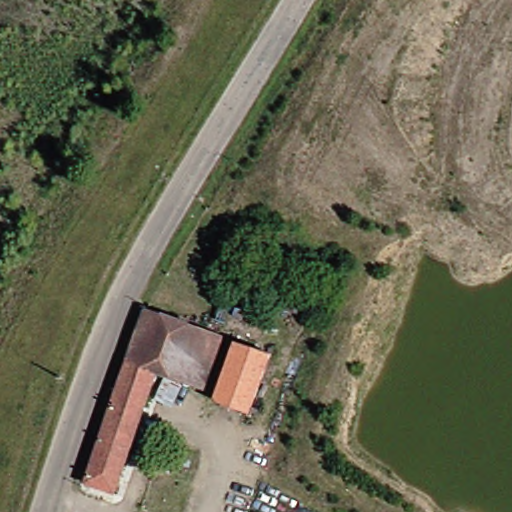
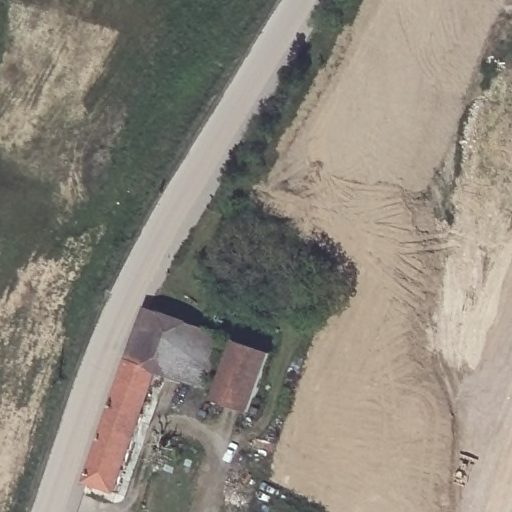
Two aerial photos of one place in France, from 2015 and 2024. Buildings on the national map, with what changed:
unchanged [(261,297),(233,285),(237,274),(266,286),(261,297)]
unchanged [(281,293),(305,301),(300,320),(275,311),(281,293)]
unchanged [(159,376),(116,492),(87,482),(151,308),(180,318),(159,376)]
unchanged [(159,376),(180,318),(225,333),(206,391),(159,376)]
unchanged [(255,415),(222,405),(241,345),(274,356),(255,415)]

